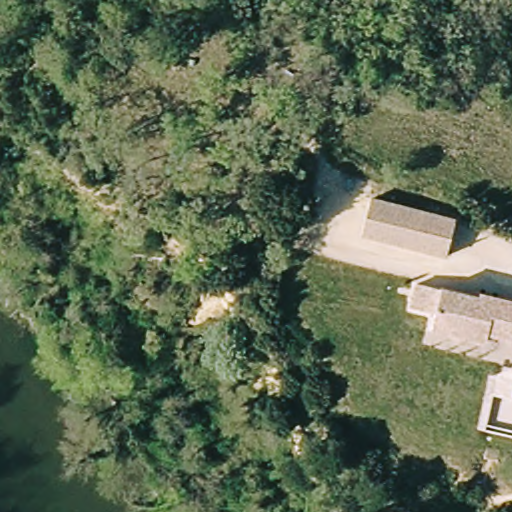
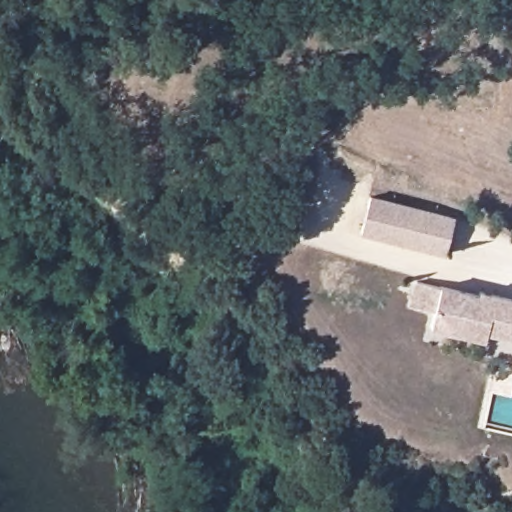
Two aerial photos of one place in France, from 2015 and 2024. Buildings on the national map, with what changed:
unchanged [(447,255),(359,232),(369,197),(457,219),(447,255)]
unchanged [(487,341),(480,339),(434,330),(437,319),(438,315),(420,311),(414,310),(414,308),(420,286),(443,291),(443,290),(482,297),(482,293),(512,300),(512,337),(490,332),(487,341)]
unchanged [(512,355),(512,352),(512,366),(509,365),(512,355)]

